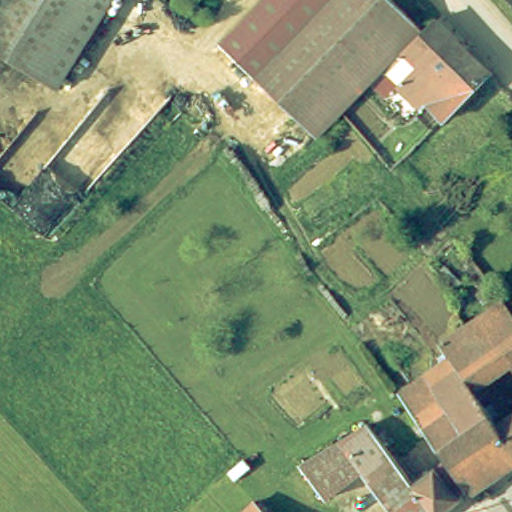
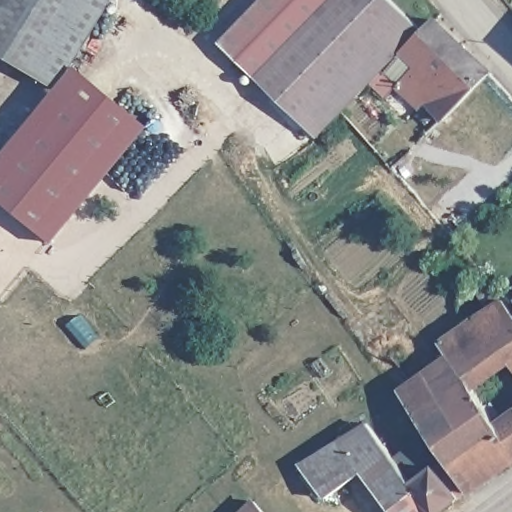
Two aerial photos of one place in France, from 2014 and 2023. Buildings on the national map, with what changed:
unchanged [(48,91),(0,58),(0,0),(110,0),(48,91)]
unchanged [(375,78),(329,118),(308,137),(215,36),(240,14),(256,0),(387,0),(421,36),(375,78)]
unchanged [(482,80),(433,123),(428,127),(415,113),(410,119),(375,78),(421,36),(430,28),(482,80)]
new [(150,125),(53,242),(0,200),(0,161),(75,67),(150,125)]
unchanged [(448,359),(442,350),(440,347),(455,335),(450,328),(452,325),(460,320),(465,326),(480,313),(489,306),(498,299),(503,305),(512,317),(512,365),(479,390),(504,424),(512,418),(512,473),(490,490),(486,492),(478,499),(400,396),(448,359)]
unchanged [(507,303),(512,300),(512,308),(507,303)]
unchanged [(368,421),(426,490),(449,471),(474,502),(461,512),(398,512),(369,475),(337,499),(332,503),(307,471),(311,467),(368,421)]
unchanged [(243,512),(252,502),(261,512),(243,512)]

